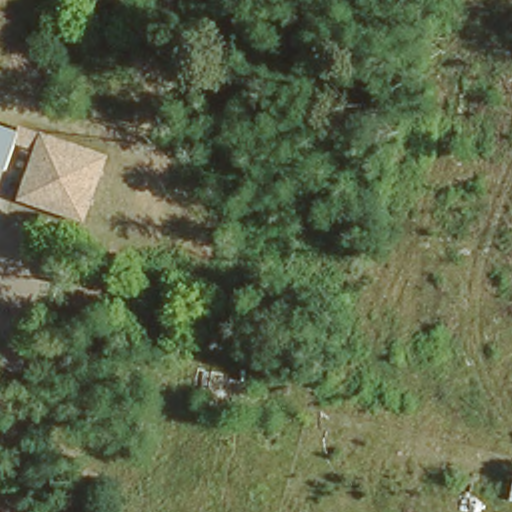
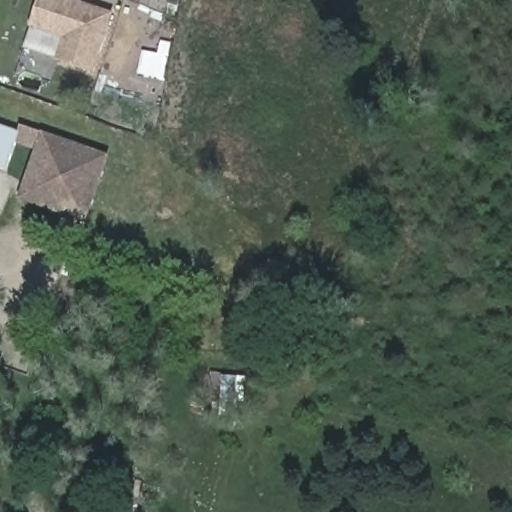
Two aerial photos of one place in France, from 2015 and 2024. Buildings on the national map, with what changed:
new [(93,71),(56,60),(62,40),(26,29),(34,0),(67,0),(109,12),(93,71)]
unchanged [(6,167),(0,164),(0,121),(19,127),(14,142),(6,167)]
unchanged [(19,127),(111,154),(86,224),(19,201),(36,150),(14,142),(19,127)]
unchanged [(60,272),(49,267),(57,239),(69,244),(60,272)]

